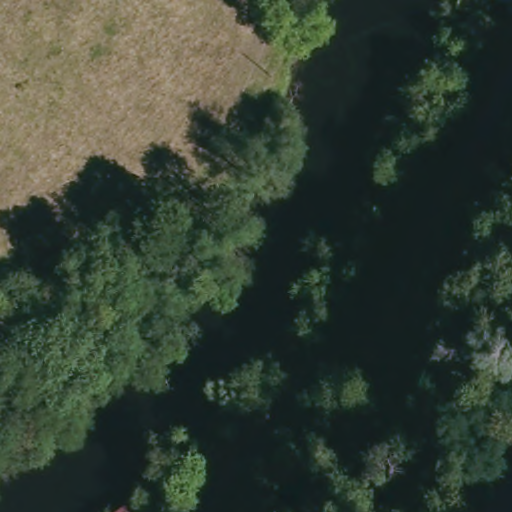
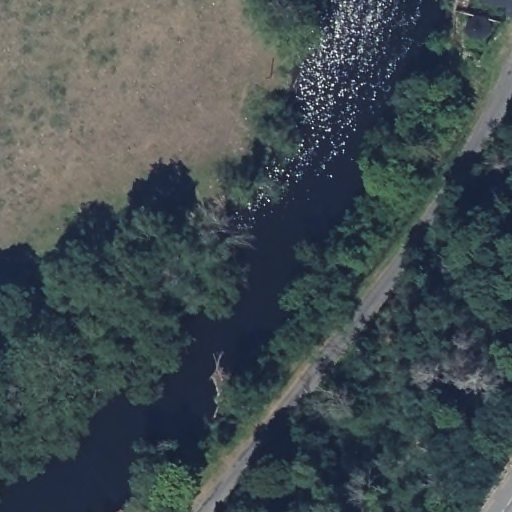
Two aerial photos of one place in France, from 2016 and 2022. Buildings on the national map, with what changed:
unchanged [(496,11),(469,0),(504,0),(496,11)]
unchanged [(149,512),(121,512),(138,499),(149,512)]
unchanged [(177,512),(154,512),(168,501),(177,512)]

